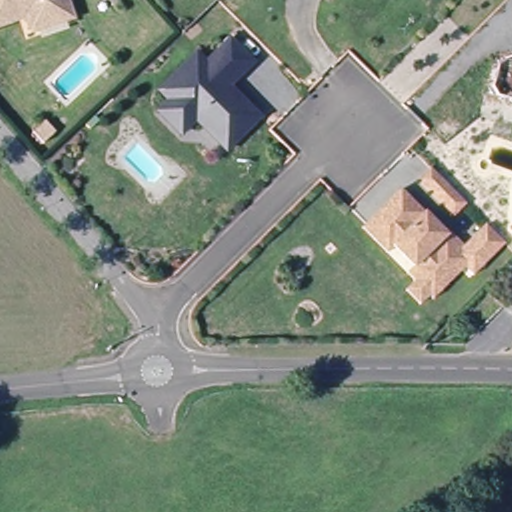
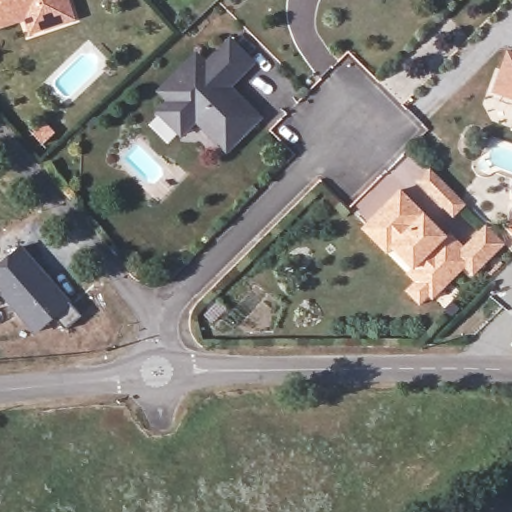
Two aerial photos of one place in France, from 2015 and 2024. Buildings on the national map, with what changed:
unchanged [(68,24),(34,36),(29,22),(0,32),(0,0),(68,0),(75,22),(68,24)]
unchanged [(162,111),(173,100),(165,93),(189,70),(203,55),(210,62),(234,38),(258,61),(234,85),(265,116),(232,150),(200,120),(197,124),(186,134),(162,111)]
unchanged [(507,94),(502,85),(508,63),(512,60),(512,95),(507,94)]
unchanged [(53,143),(42,132),(53,121),(64,132),(53,143)]
unchanged [(466,202),(453,215),(418,180),(431,167),(466,202)]
unchanged [(466,248),(492,223),(503,234),(510,242),(478,273),(470,265),(467,262),(439,289),(426,275),(426,261),(403,239),(386,239),(371,223),(406,188),(466,248)]
unchanged [(386,239),(403,239),(426,261),(426,275),(439,289),(467,262),(470,265),(438,297),(434,293),(425,303),(412,289),(421,280),(413,272),(419,266),(398,246),(393,252),(368,227),(371,223),(386,239)]
new [(0,266),(24,246),(81,316),(66,329),(55,317),(37,334),(1,292),(0,293),(0,266)]

